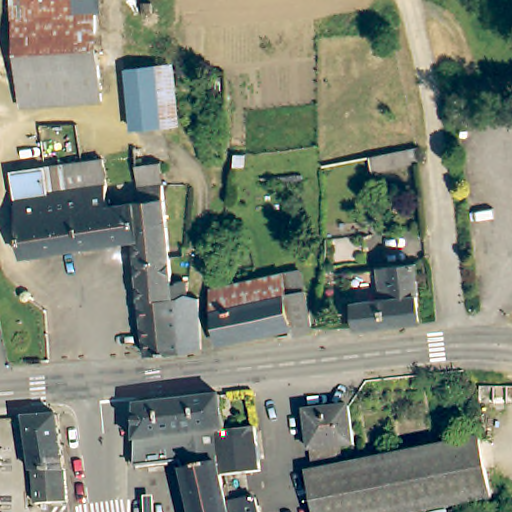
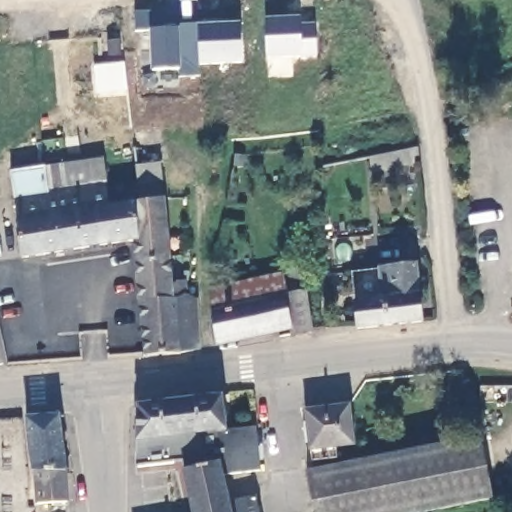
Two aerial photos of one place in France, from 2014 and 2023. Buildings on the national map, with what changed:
demolished [(96,48),(17,54),(13,0),(93,0),(96,48)]
new [(164,10),(165,29),(176,29),(176,25),(197,24),(200,76),(179,77),(178,69),(152,70),(150,31),(135,31),(134,12),(164,10)]
new [(265,19),(300,17),(300,25),(315,24),(316,56),(266,58),(265,19)]
new [(197,23),(214,22),(214,25),(240,24),(241,63),(199,64),(197,23)]
demolished [(21,107),(17,54),(96,48),(101,100),(21,107)]
unchanged [(233,166),(235,154),(243,155),(242,167),(233,166)]
unchanged [(107,204),(139,200),(135,165),(157,163),(160,185),(165,238),(153,240),(134,242),(132,242),(21,256),(10,171),(101,159),(107,204)]
unchanged [(232,186),(232,175),(242,175),(241,186),(232,186)]
unchanged [(140,301),(134,242),(153,240),(165,238),(171,283),(176,283),(176,281),(185,280),(187,296),(186,298),(140,301)]
unchanged [(357,323),(350,267),(415,260),(421,316),(357,323)]
unchanged [(210,312),(209,296),(209,290),(270,276),(282,274),(300,271),(304,290),(305,299),(210,312)]
unchanged [(186,298),(196,297),(199,350),(189,351),(166,353),(145,355),(140,301),(186,298)]
unchanged [(215,341),(211,320),(210,312),(305,299),(312,332),(276,338),(276,335),(216,347),(215,341)]
unchanged [(223,390),(227,425),(193,430),(188,395),(223,390)]
unchanged [(136,400),(188,395),(193,430),(136,437),(136,400)]
unchanged [(348,401),(352,440),(336,441),(337,455),(312,457),(305,405),(348,401)]
unchanged [(58,415),(66,467),(67,502),(35,503),(32,471),(32,469),(24,417),(58,415)]
unchanged [(222,471),(219,458),(184,466),(183,463),(182,455),(135,461),(136,437),(193,430),(227,425),(255,421),(261,465),(222,471)]
unchanged [(392,512),(316,512),(307,467),(402,448),(479,433),(485,462),(492,492),(392,512)]
unchanged [(219,458),(222,471),(228,498),(256,492),(260,512),(194,512),(184,466),(219,458)]
unchanged [(448,512),(411,512),(447,505),(448,512)]

